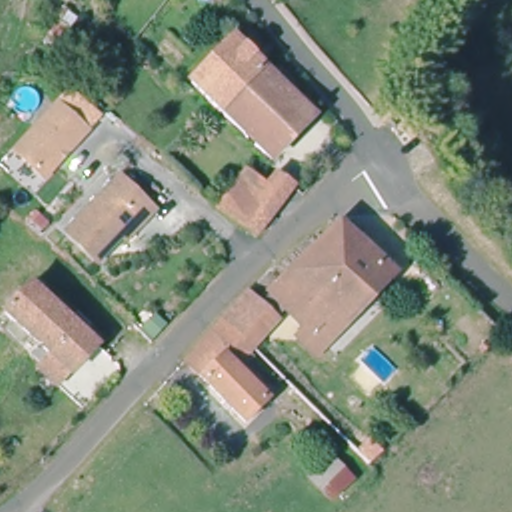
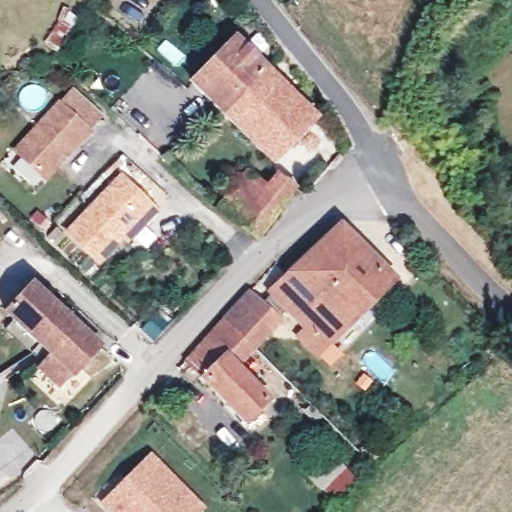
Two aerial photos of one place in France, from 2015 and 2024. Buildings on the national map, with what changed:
unchanged [(54,53),(41,45),(57,19),(63,7),(80,14),(54,53)]
unchanged [(115,44),(90,25),(96,16),(121,35),(115,44)]
unchanged [(194,86),(235,40),(260,64),(217,109),(194,86)]
unchanged [(217,109),(260,64),(263,66),(315,115),(272,161),(219,110),(217,109)]
unchanged [(45,179),(14,151),(56,103),(87,130),(45,179)]
unchanged [(250,170),(268,184),(240,223),(222,210),(250,170)]
unchanged [(268,184),(276,172),(297,187),(295,189),(260,237),(255,233),(240,223),(268,184)]
unchanged [(143,221),(139,217),(97,261),(65,232),(118,176),(154,209),(143,221)]
unchanged [(391,275),(316,348),(301,334),(308,326),(276,294),(343,227),(391,275)]
unchanged [(263,399),(242,419),(181,359),(225,314),(252,289),(267,305),(241,330),(218,354),(263,399)]
unchanged [(8,324),(0,316),(0,315),(23,290),(44,309),(49,302),(65,316),(67,312),(99,339),(90,349),(53,391),(31,372),(36,364),(0,333),(8,324)]
unchanged [(333,466),(315,484),(297,464),(316,446),(333,466)]
new [(102,501),(149,456),(198,506),(192,512),(114,512),(102,501)]

